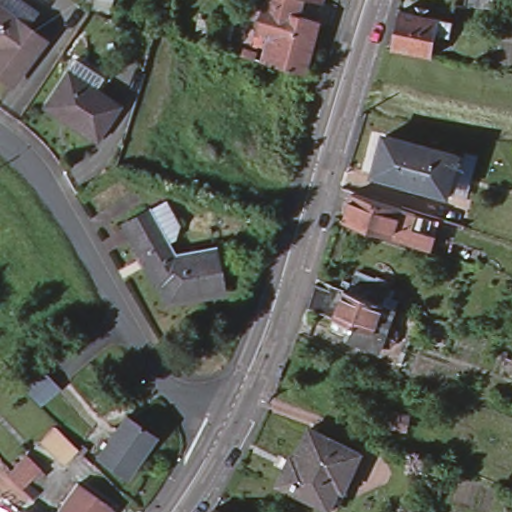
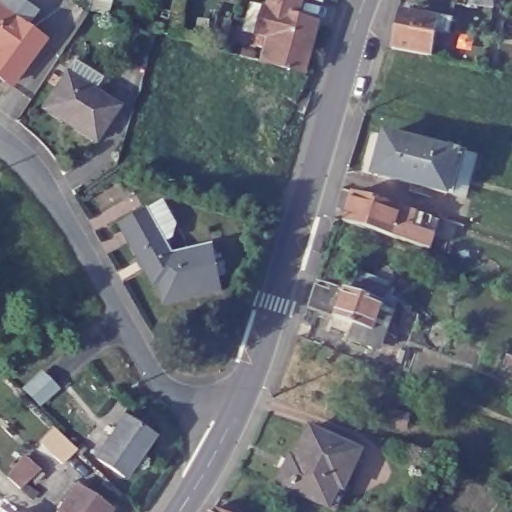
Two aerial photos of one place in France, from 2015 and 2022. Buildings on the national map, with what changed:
unchanged [(0,17),(0,0),(7,0),(22,11),(12,25),(45,48),(12,92),(0,84),(0,17)]
unchanged [(270,65),(277,40),(265,36),(272,10),(275,11),(279,0),(303,0),(297,19),(317,25),(303,75),(270,65)]
unchanged [(311,0),(325,0),(323,4),(311,0)]
unchanged [(492,0),(492,6),(462,2),(462,0),(492,0)]
unchanged [(450,20),(457,21),(455,35),(448,34),(443,57),(385,46),(392,8),(450,20)]
unchanged [(97,147),(60,124),(49,117),(69,86),(72,81),(77,73),(100,88),(92,101),(117,116),(97,147)]
unchanged [(387,134),(460,153),(450,190),(377,171),(387,134)]
unchanged [(343,225),(352,197),(401,214),(415,217),(438,225),(434,240),(430,254),(406,246),(392,241),(343,225)]
unchanged [(150,210),(175,255),(213,247),(223,291),(170,302),(165,283),(159,285),(126,224),(150,210)]
unchanged [(382,335),(390,337),(382,357),(345,343),(352,323),(332,315),(303,305),(312,282),(327,287),(328,281),(342,286),(342,287),(382,302),(394,306),(382,335)]
unchanged [(127,410),(155,430),(125,471),(117,482),(93,457),(97,451),(127,410)]
unchanged [(407,415),(403,429),(392,426),(396,411),(407,415)]
unchanged [(53,426),(73,447),(57,462),(37,440),(53,426)]
unchanged [(293,458),(297,460),(312,430),(363,456),(345,493),(340,490),(330,510),(280,486),(293,458)]
unchanged [(33,486),(29,482),(20,490),(5,475),(25,457),(38,473),(42,477),(33,486)]
unchanged [(55,509),(77,481),(110,510),(108,512),(59,512),(55,509)]
unchanged [(216,507),(226,512),(213,512),(216,507)]

